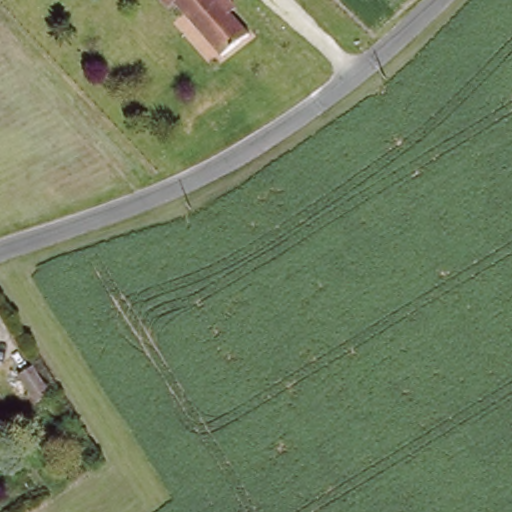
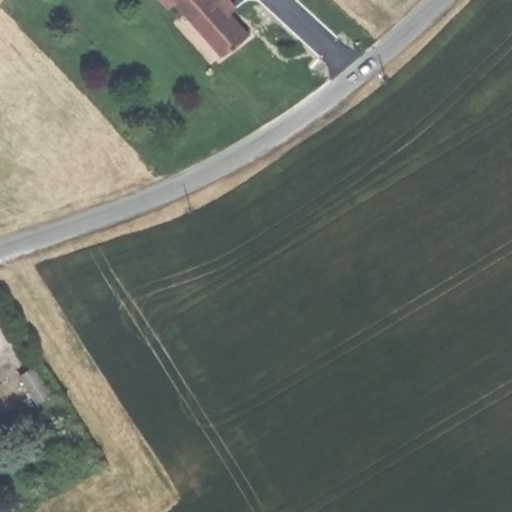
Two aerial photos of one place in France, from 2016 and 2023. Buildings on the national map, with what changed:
unchanged [(229,14),(248,35),(218,62),(206,49),(211,44),(176,5),(171,11),(161,0),(216,0),(230,0),(236,7),(229,14)]
unchanged [(29,369),(48,396),(34,405),(16,378),(29,369)]

